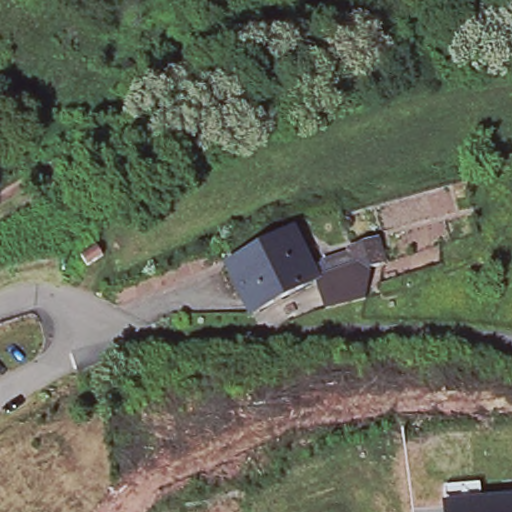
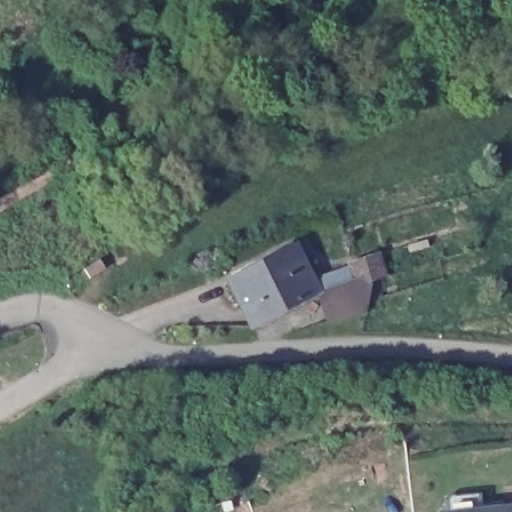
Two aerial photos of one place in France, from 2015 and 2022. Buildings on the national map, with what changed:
unchanged [(0,112),(0,102),(5,110),(0,112)]
unchanged [(292,247),(311,282),(316,291),(315,292),(251,326),(227,281),(292,247)]
unchanged [(320,275),(348,266),(347,263),(377,254),(384,277),(382,277),(365,282),(369,285),(364,311),(324,321),(315,292),(316,291),(311,282),(321,278),(320,275)]
unchanged [(497,512),(512,510),(512,512),(497,512)]

